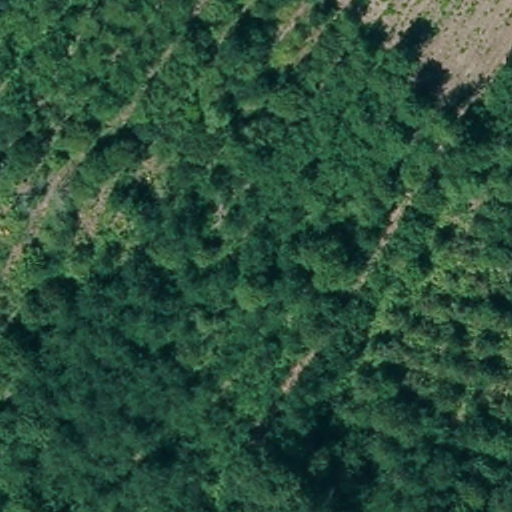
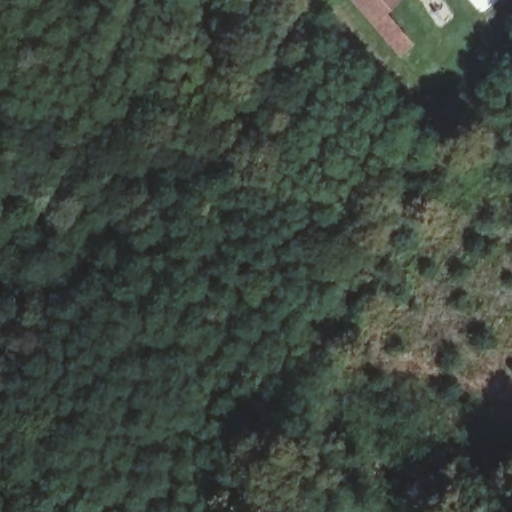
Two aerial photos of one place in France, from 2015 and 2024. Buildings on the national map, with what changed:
new [(413,46),(399,56),(351,0),(401,0),(385,13),(413,46)]

